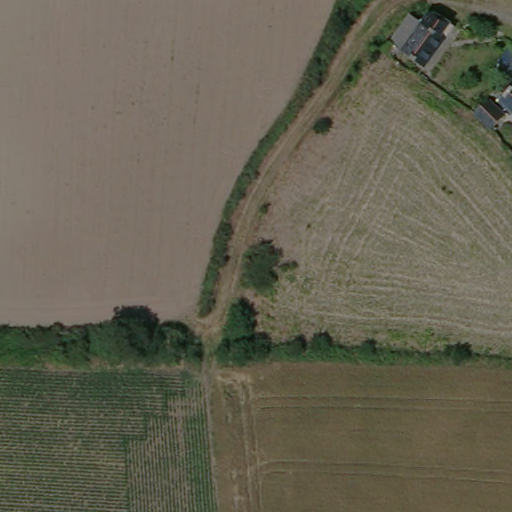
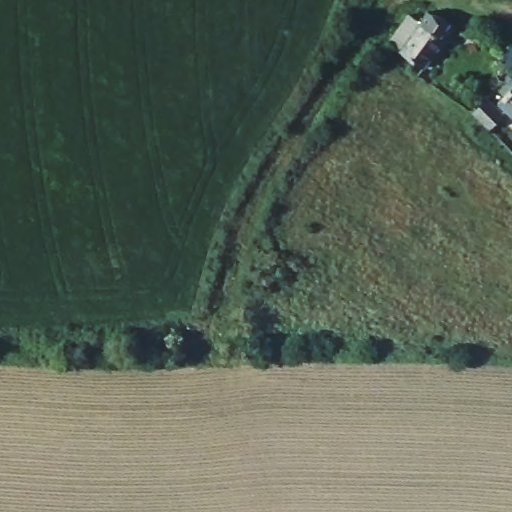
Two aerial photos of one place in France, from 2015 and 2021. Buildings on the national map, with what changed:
unchanged [(418,72),(388,43),(413,19),(422,25),(429,19),(439,20),(454,34),(418,72)]
unchanged [(512,110),(502,100),(508,94),(499,84),(512,71),(512,72),(512,110)]
unchanged [(511,114),(496,129),(479,112),(494,97),(511,114)]

